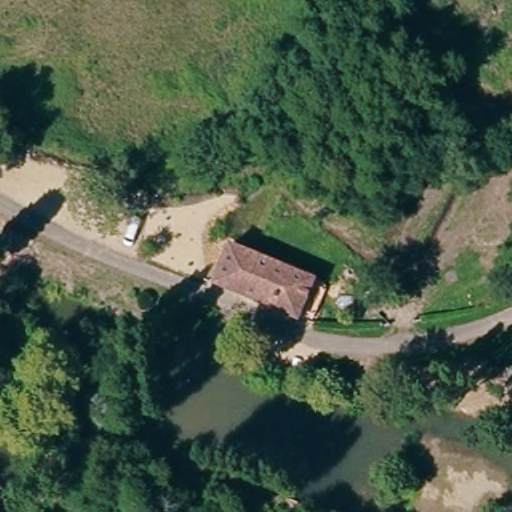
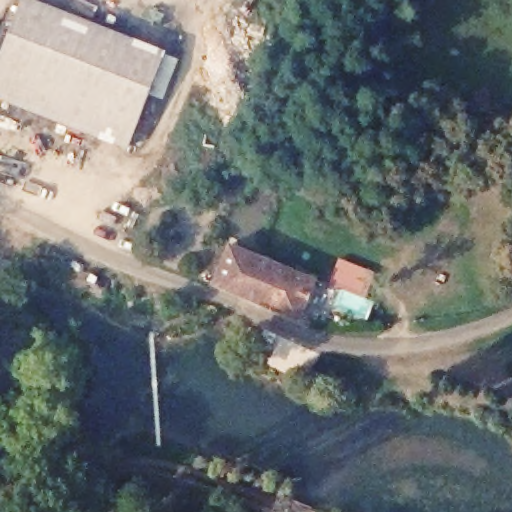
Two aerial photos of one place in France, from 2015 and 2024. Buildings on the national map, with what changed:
new [(178,59),(162,99),(150,92),(127,150),(0,99),(0,55),(22,0),(36,0),(166,52),(178,59)]
unchanged [(232,242),(315,274),(330,281),(321,301),(306,297),(300,317),(215,287),(232,242)]

